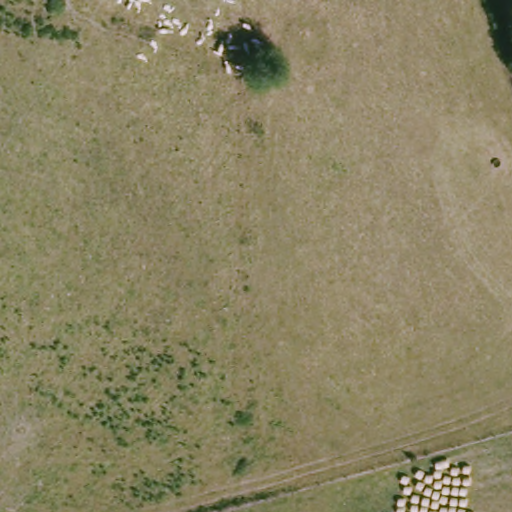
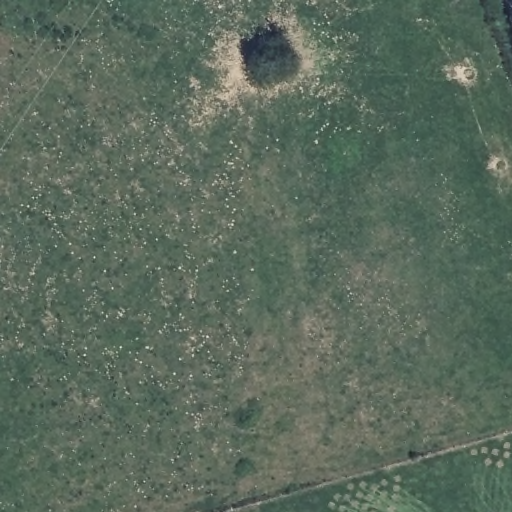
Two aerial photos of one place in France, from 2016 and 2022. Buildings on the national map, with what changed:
[]

